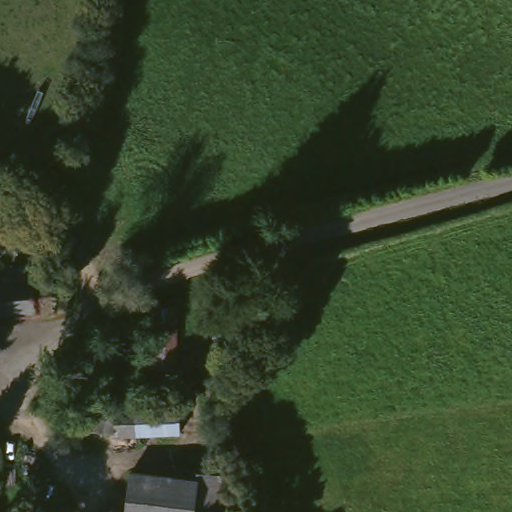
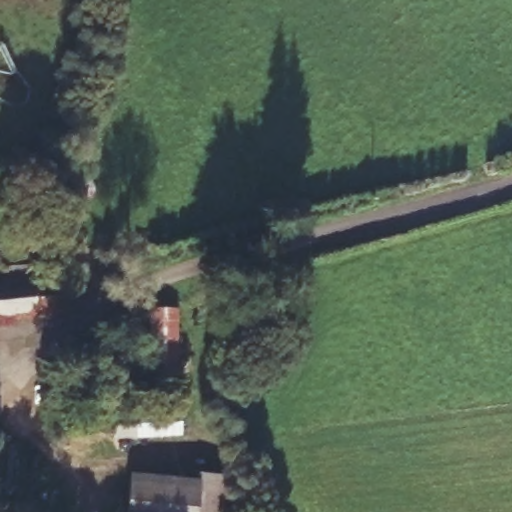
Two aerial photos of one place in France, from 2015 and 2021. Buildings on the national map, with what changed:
unchanged [(50,290),(69,290),(68,315),(0,324),(0,289),(50,285),(50,290)]
unchanged [(147,379),(139,317),(168,313),(175,374),(147,379)]
unchanged [(111,412),(110,437),(75,436),(75,411),(111,412)]
unchanged [(168,441),(118,449),(114,424),(164,416),(168,441)]
unchanged [(132,512),(136,479),(210,490),(208,512),(132,512)]

